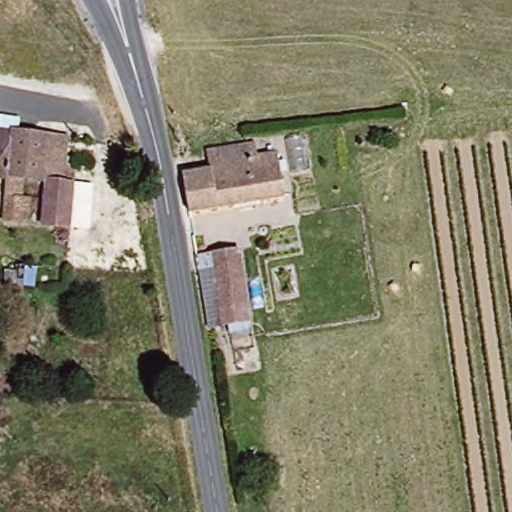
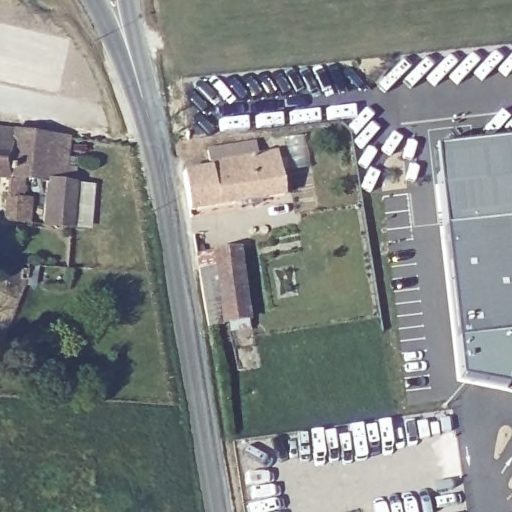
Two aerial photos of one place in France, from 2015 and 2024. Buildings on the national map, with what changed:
unchanged [(46,181),(23,178),(21,198),(30,199),(26,222),(3,220),(6,177),(0,176),(0,132),(69,142),(66,181),(72,182),(67,226),(42,224),(46,181)]
unchanged [(213,167),(211,148),(258,142),(261,153),(280,150),(286,193),(192,211),(186,172),(213,167)]
new [(512,143),(512,338),(460,344),(438,150),(512,143)]
unchanged [(195,234),(210,233),(212,251),(238,249),(249,320),(210,327),(195,234)]
unchanged [(22,286),(3,285),(3,272),(23,273),(22,286)]

